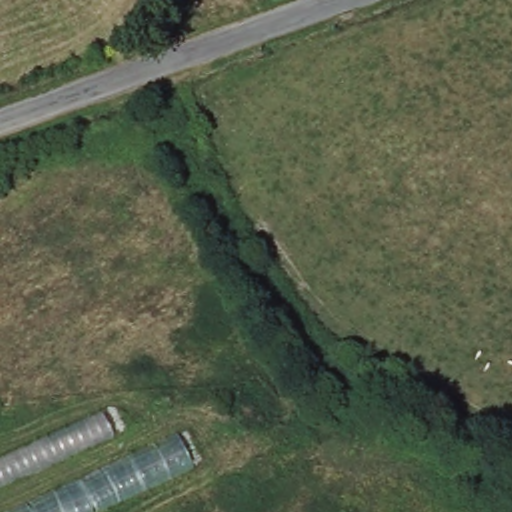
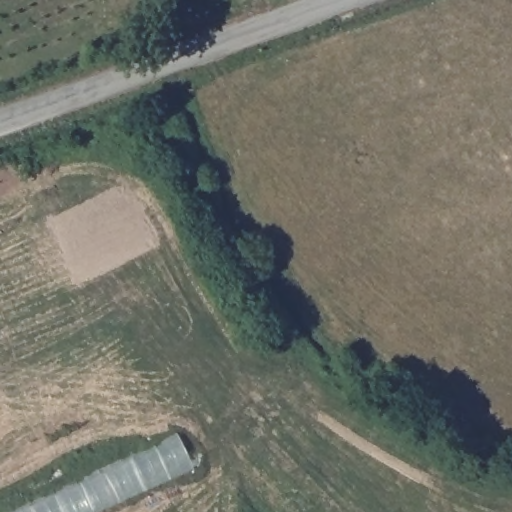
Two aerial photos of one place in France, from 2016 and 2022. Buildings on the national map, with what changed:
demolished [(0,457),(99,412),(111,434),(0,486),(0,457)]
unchanged [(174,436),(191,469),(99,512),(10,512),(174,436)]

